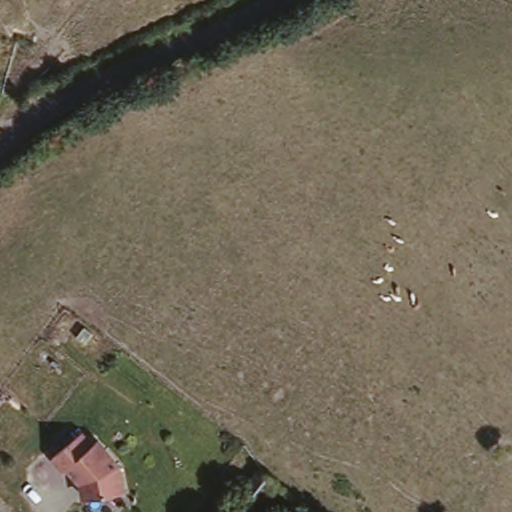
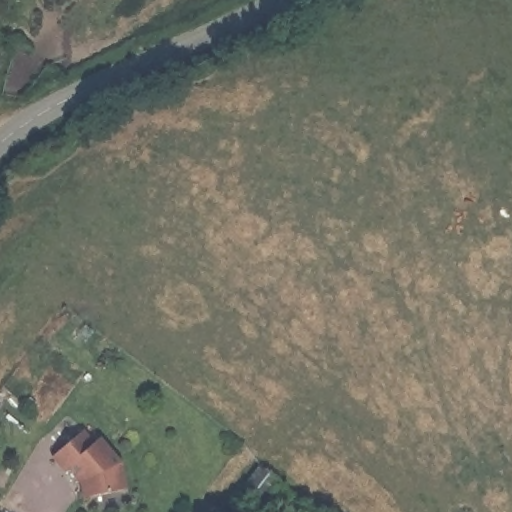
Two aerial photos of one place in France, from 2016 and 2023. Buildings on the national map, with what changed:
unchanged [(79,486),(69,473),(54,461),(83,431),(95,441),(99,438),(123,465),(126,490),(81,501),(79,486)]
unchanged [(260,485),(254,481),(249,490),(241,484),(248,476),(242,471),(258,452),(275,466),(260,485)]

